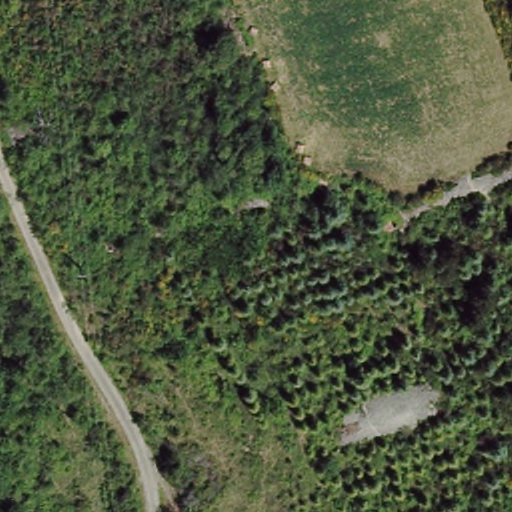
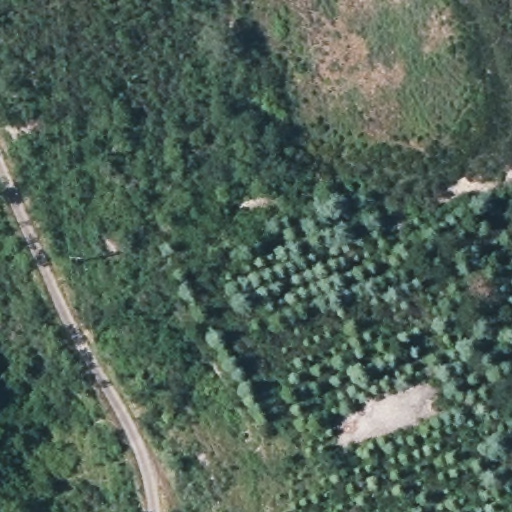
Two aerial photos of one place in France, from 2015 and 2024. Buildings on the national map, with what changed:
[]

